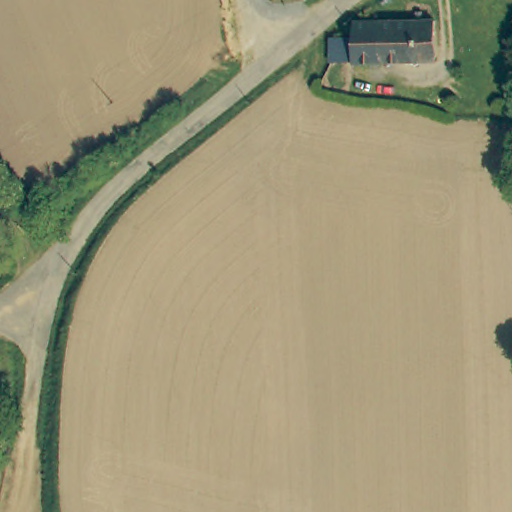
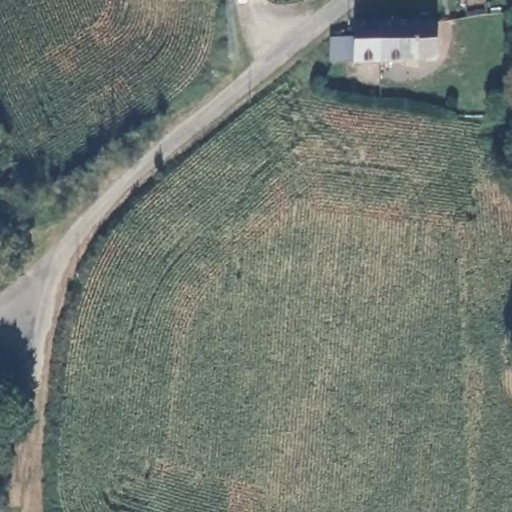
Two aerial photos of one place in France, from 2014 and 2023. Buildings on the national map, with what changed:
unchanged [(361,37),(360,22),(442,20),(442,60),(340,62),(341,37),(361,37)]
unchanged [(45,201),(62,193),(63,196),(67,208),(62,218),(36,229),(28,209),(45,201)]

